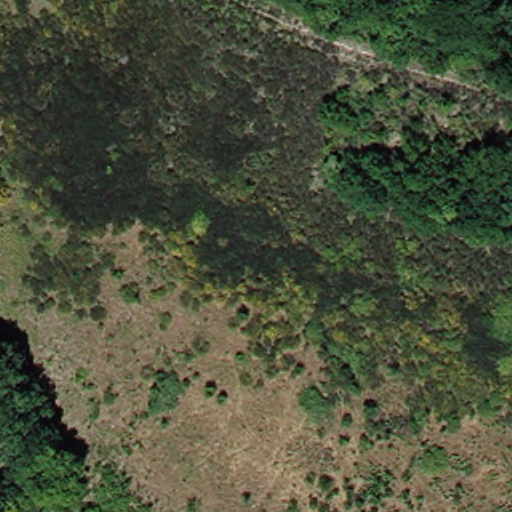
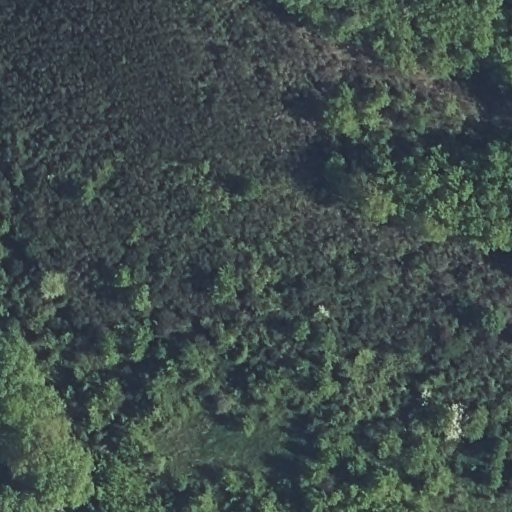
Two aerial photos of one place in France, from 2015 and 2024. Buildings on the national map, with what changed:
[]

